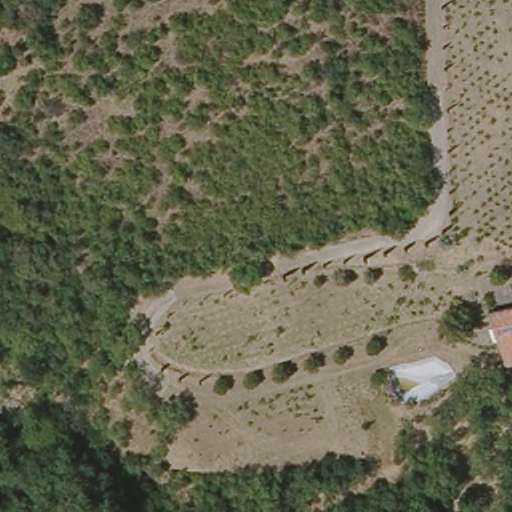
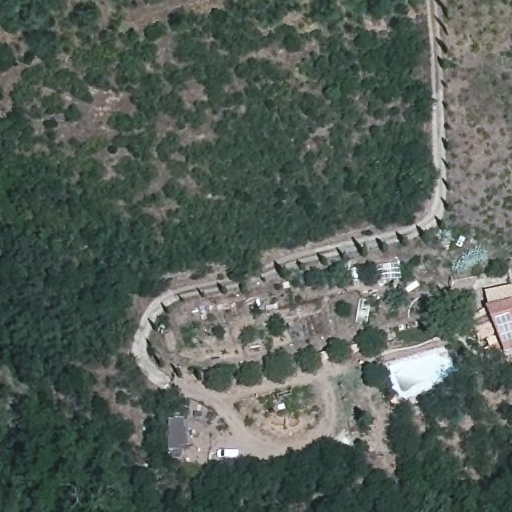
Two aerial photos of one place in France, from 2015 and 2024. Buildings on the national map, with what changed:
unchanged [(512,353),(504,355),(503,356),(489,309),(512,302),(512,353)]

